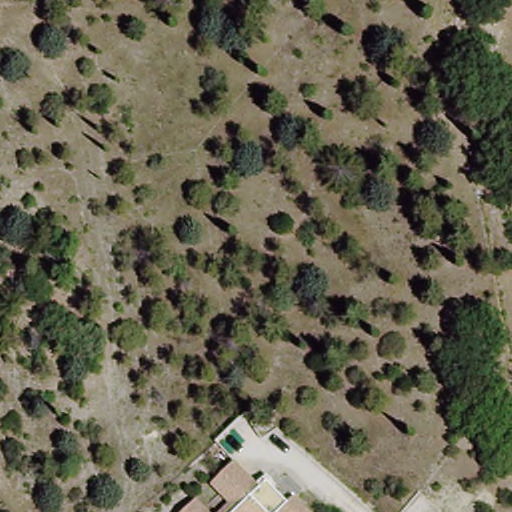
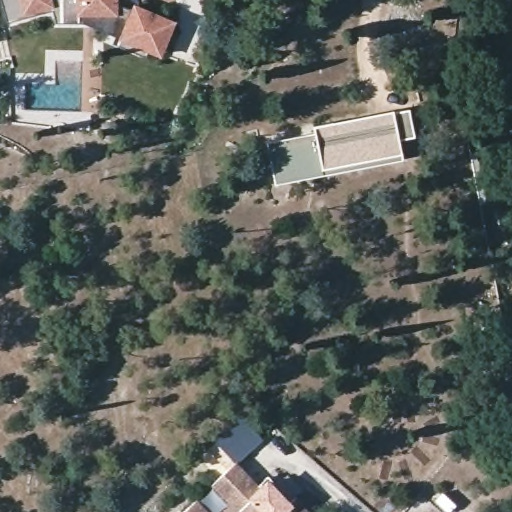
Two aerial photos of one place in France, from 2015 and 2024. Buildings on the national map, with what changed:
new [(133,10),(135,4),(177,21),(161,58),(149,52),(147,58),(113,44),(116,36),(85,23),(58,24),(54,10),(8,23),(1,0),(118,0),(118,5),(133,10)]
new [(315,133),(314,126),(393,111),(394,112),(410,109),(416,136),(400,139),(404,160),(276,184),(267,141),(315,133)]
new [(243,417),(260,435),(236,458),(219,440),(243,417)]
unchanged [(236,502),(217,482),(242,460),(268,487),(275,481),(294,502),(302,496),(316,512),(223,512),(236,502)]
unchanged [(201,497),(216,512),(183,512),(201,497)]

